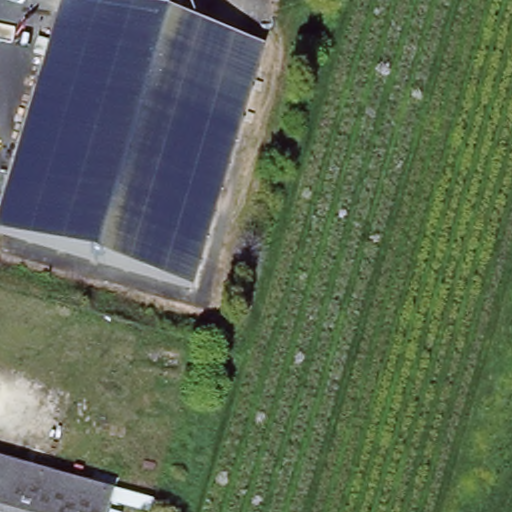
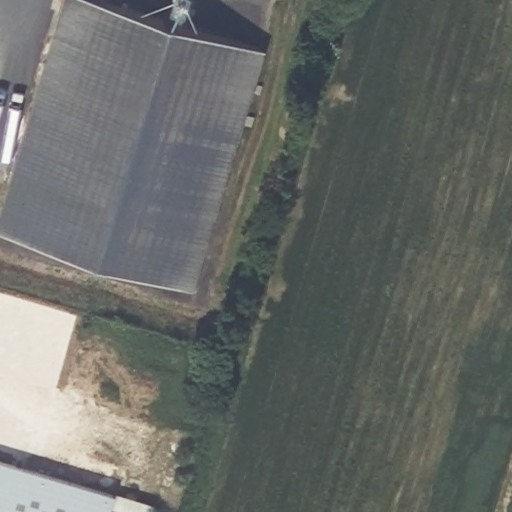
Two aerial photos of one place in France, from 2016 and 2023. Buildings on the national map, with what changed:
unchanged [(0,229),(0,221),(65,0),(102,0),(102,1),(263,50),(195,288),(0,229)]
unchanged [(0,456),(115,490),(109,512),(0,512),(0,456)]

